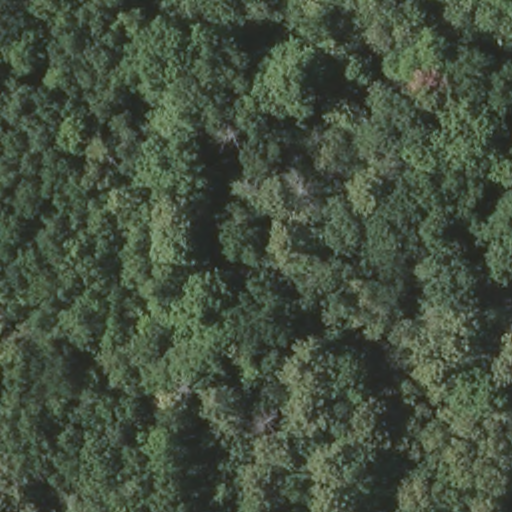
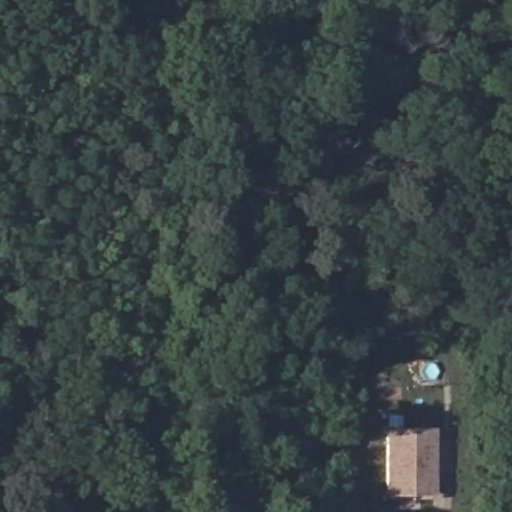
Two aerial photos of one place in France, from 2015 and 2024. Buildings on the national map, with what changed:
new [(388,493),(386,429),(434,429),(434,492),(388,493)]

